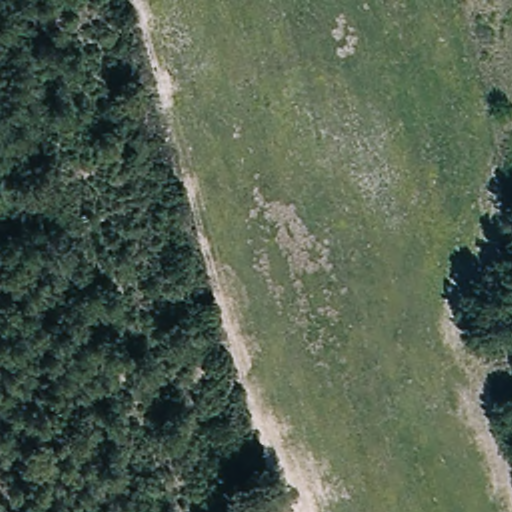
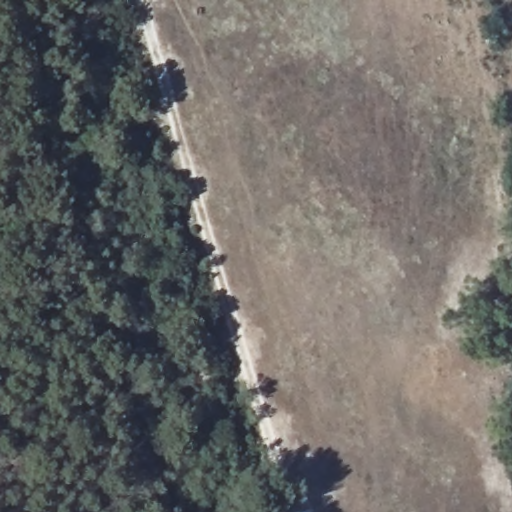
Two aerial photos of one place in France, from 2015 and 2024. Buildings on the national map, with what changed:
[]

